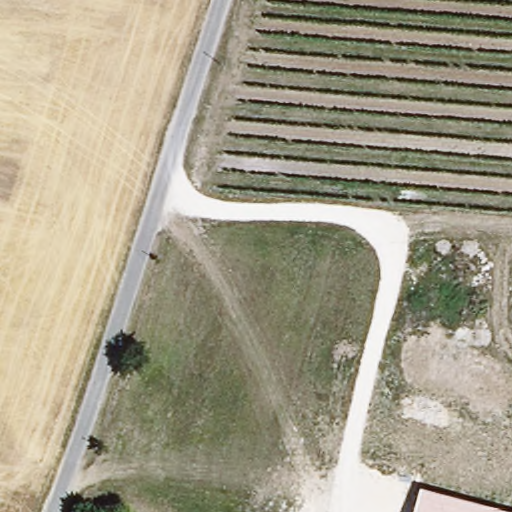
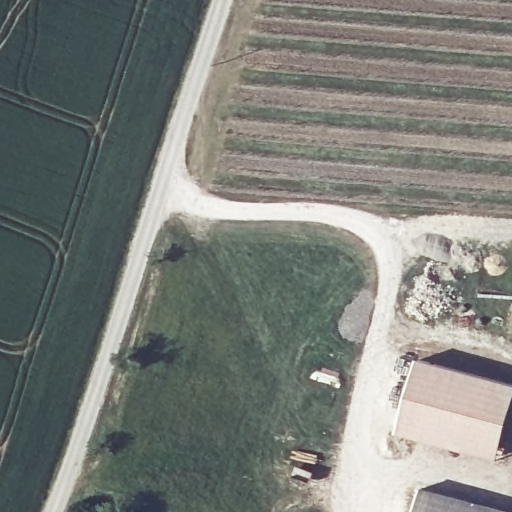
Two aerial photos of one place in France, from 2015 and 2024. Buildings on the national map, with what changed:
new [(512,384),(512,418),(500,460),(400,432),(419,359),(512,384)]
unchanged [(421,488),(510,512),(415,512),(421,488)]

